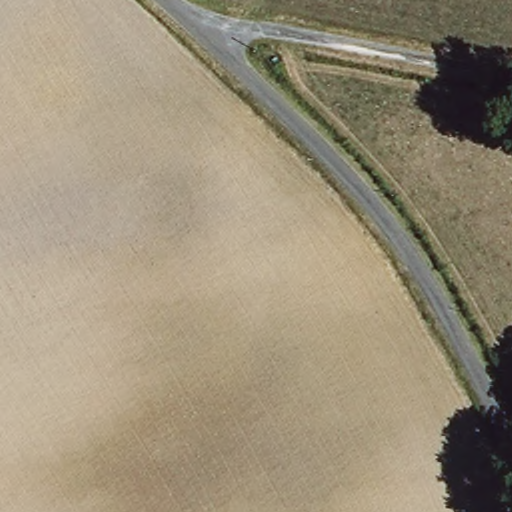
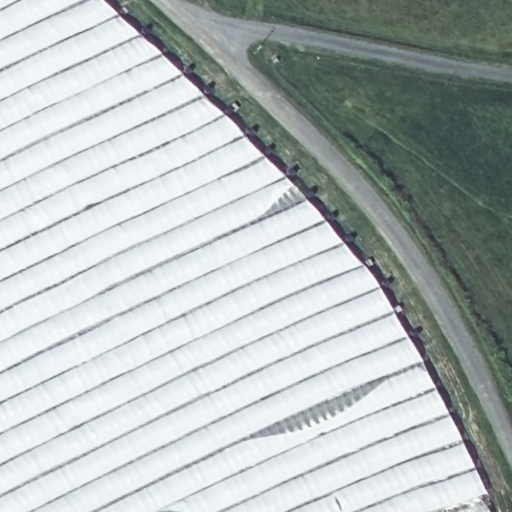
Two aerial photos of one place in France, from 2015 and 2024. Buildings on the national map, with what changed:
demolished [(180,104),(66,169),(48,136),(0,164),(0,0),(75,0),(90,17),(180,104)]
new [(314,206),(366,267),(389,300),(419,353),(459,431),(486,493),(433,512),(0,512),(0,0),(107,0),(233,121),(314,206)]

